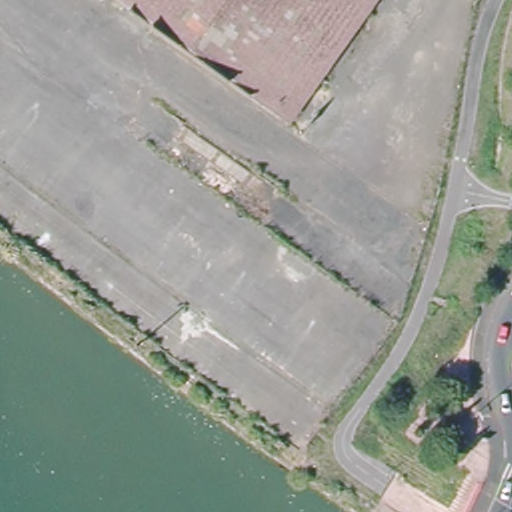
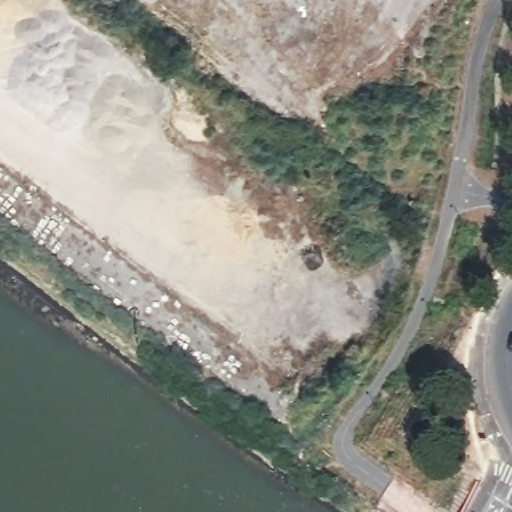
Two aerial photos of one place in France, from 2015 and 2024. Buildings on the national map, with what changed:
demolished [(292,118),(126,0),(376,0),(292,118)]

